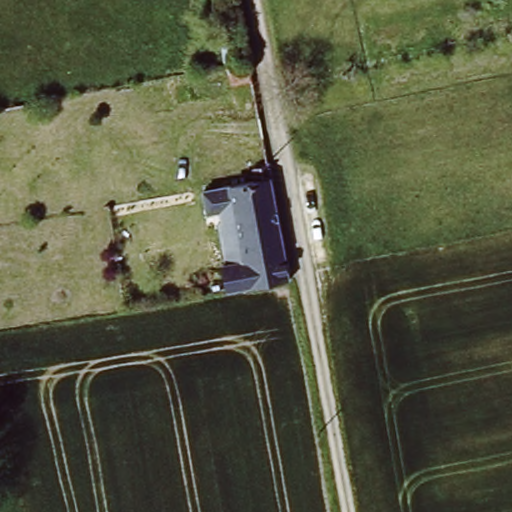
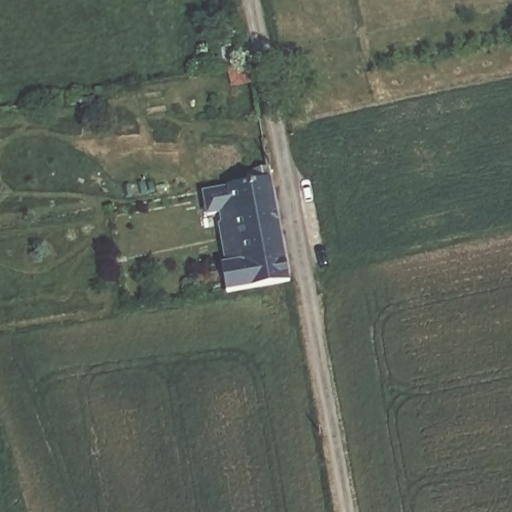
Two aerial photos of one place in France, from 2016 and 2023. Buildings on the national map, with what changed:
unchanged [(291,280),(227,291),(222,263),(226,262),(217,210),(207,212),(202,188),(250,179),(247,164),(267,160),(291,280)]

